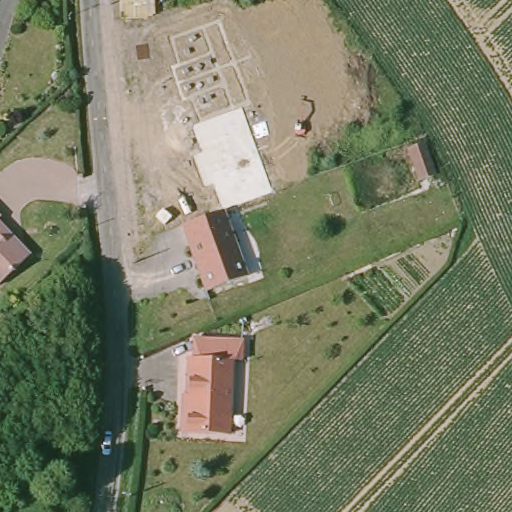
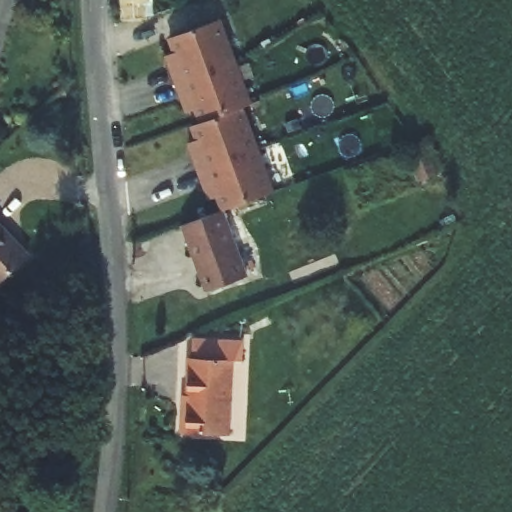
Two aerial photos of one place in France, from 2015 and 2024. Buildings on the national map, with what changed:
unchanged [(121,19),(120,0),(146,0),(147,18),(121,19)]
new [(252,103),(243,106),(274,192),(222,210),(221,211),(216,197),(208,199),(187,143),(195,140),(190,125),(198,124),(195,109),(187,111),(165,55),(172,52),(167,38),(222,18),(252,103)]
new [(424,142),(435,173),(418,179),(407,149),(424,142)]
unchanged [(247,277),(205,292),(182,225),(222,210),(247,277)]
unchanged [(28,257),(0,283),(0,226),(28,257)]
unchanged [(188,369),(189,349),(237,352),(236,371),(226,371),(222,445),(177,443),(177,419),(182,419),(184,369),(188,369)]

